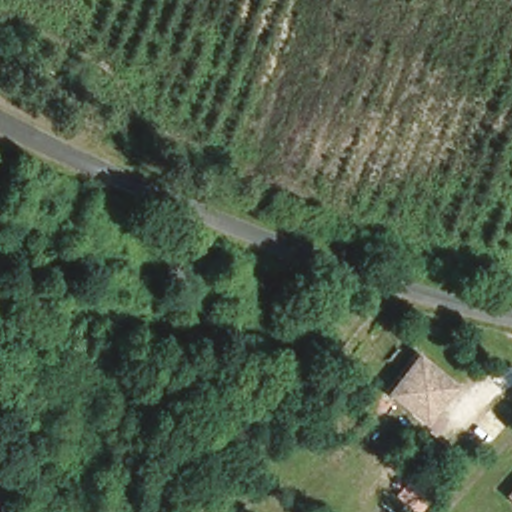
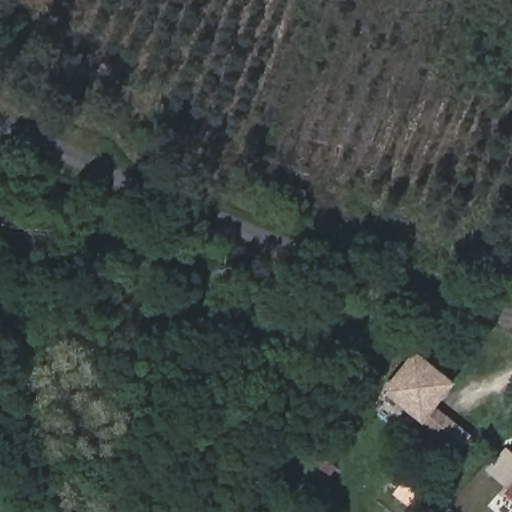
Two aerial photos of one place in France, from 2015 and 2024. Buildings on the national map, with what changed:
unchanged [(402,405),(384,390),(412,355),(446,383),(425,409),(418,418),(402,405)]
unchanged [(392,473),(425,468),(433,503),(400,510),(392,473)]
unchanged [(507,496),(512,491),(512,500),(507,496)]

